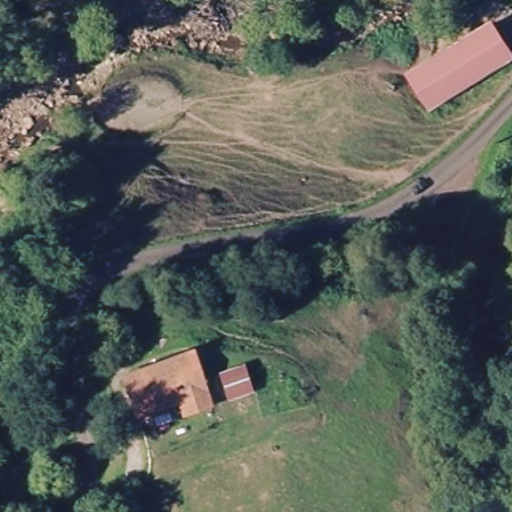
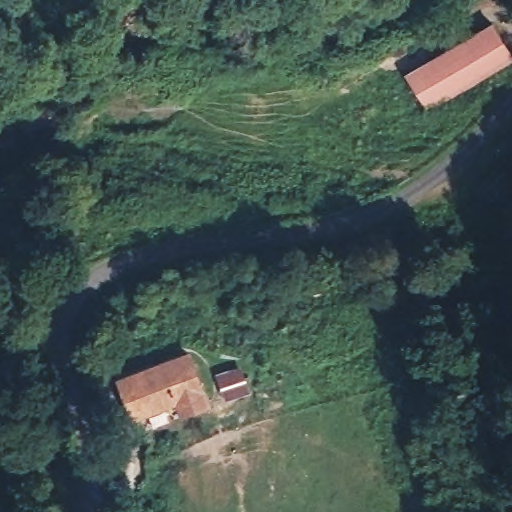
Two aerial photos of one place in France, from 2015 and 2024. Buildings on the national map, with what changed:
unchanged [(512,47),(512,66),(426,110),(406,70),(499,15),(512,47)]
unchanged [(189,351),(200,377),(135,403),(124,376),(140,369),(189,351)]
unchanged [(209,402),(185,410),(181,399),(141,414),(135,403),(200,377),(209,402)]

